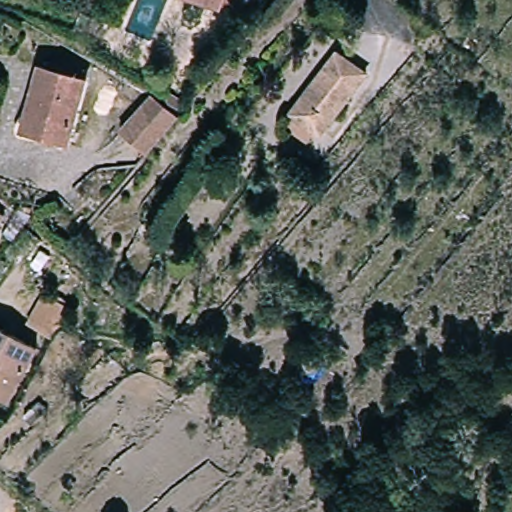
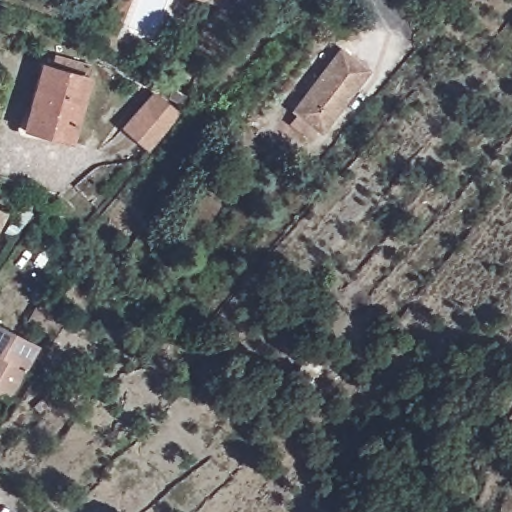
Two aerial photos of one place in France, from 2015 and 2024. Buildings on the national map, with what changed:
unchanged [(210,0),(227,0),(225,6),(210,0)]
unchanged [(296,102),(342,50),(368,72),(322,125),(296,102)]
unchanged [(48,59),(94,77),(68,141),(32,128),(21,124),(29,102),(48,59)]
unchanged [(142,151),(119,127),(156,88),(186,105),(142,151)]
unchanged [(9,212),(0,231),(0,207),(9,212)]
unchanged [(39,326),(62,296),(85,313),(61,343),(39,326)]
unchanged [(31,345),(3,398),(0,397),(0,328),(31,345)]

